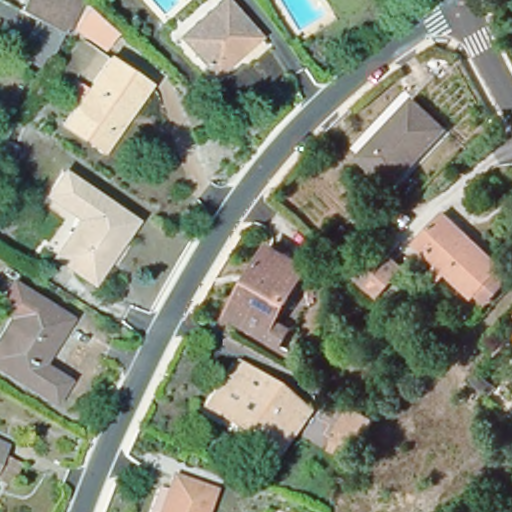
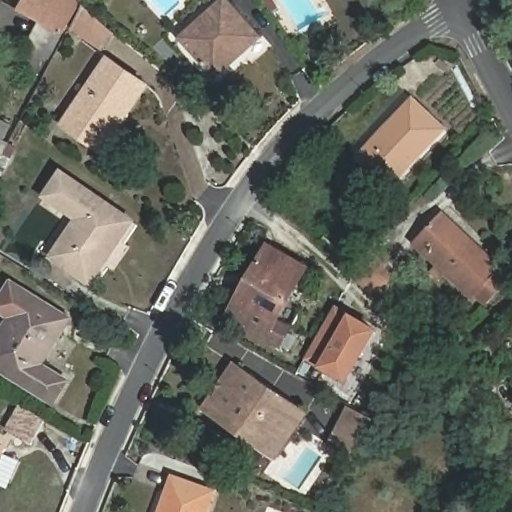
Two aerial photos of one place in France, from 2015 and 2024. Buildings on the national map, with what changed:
unchanged [(58,62),(30,49),(45,23),(25,12),(31,0),(84,0),(66,35),(71,37),(58,62)]
unchanged [(218,82),(180,42),(225,0),(226,0),(263,41),(218,82)]
unchanged [(95,147),(65,128),(111,60),(150,86),(130,116),(105,154),(95,147)]
unchanged [(446,137),(392,194),(356,159),(409,102),(446,137)]
unchanged [(1,177),(0,177),(0,141),(5,144),(15,149),(1,177)]
unchanged [(52,257),(80,217),(46,197),(61,175),(133,223),(92,285),(52,257)]
unchanged [(445,216),(505,271),(475,301),(415,247),(445,216)]
unchanged [(285,350),(267,340),(230,320),(270,247),(300,262),(310,267),(290,301),(276,325),(293,332),(285,350)]
unchanged [(399,271),(376,295),(355,276),(378,252),(399,271)]
unchanged [(53,404),(0,369),(0,339),(14,317),(0,307),(0,301),(12,283),(69,320),(41,363),(67,381),(53,404)]
new [(335,306),(376,328),(347,379),(307,356),(335,306)]
unchanged [(209,408),(231,370),(305,412),(278,458),(227,430),(204,417),(209,408)]
new [(22,407),(45,420),(31,445),(8,431),(22,407)]
unchanged [(357,454),(330,440),(346,408),(373,421),(357,454)]
unchanged [(10,489),(0,485),(0,443),(7,446),(5,452),(22,461),(10,489)]
unchanged [(160,512),(172,480),(215,497),(209,512),(160,512)]

